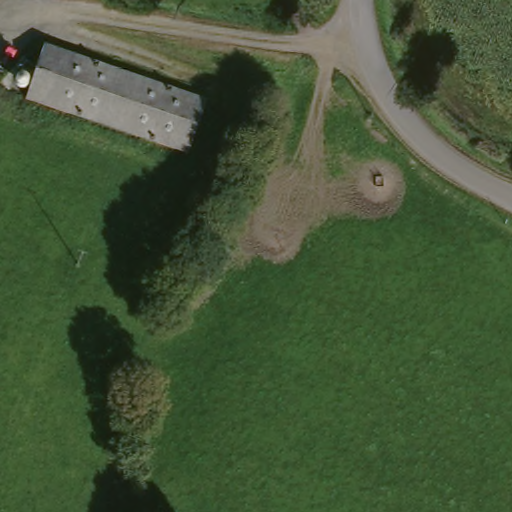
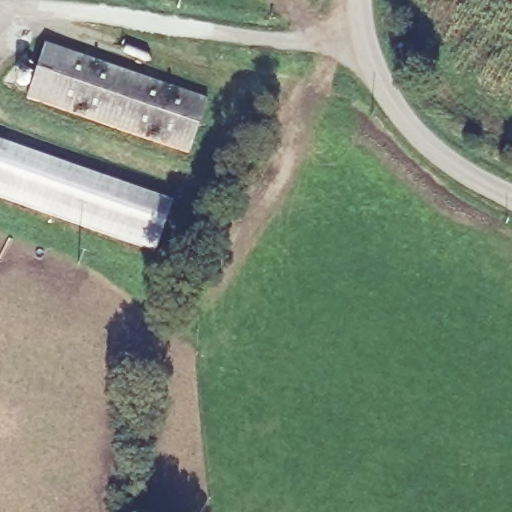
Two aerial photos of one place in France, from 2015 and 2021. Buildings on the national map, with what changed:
unchanged [(206,104),(185,159),(25,98),(46,42),(206,104)]
new [(171,199),(153,250),(0,198),(0,140),(171,199)]

